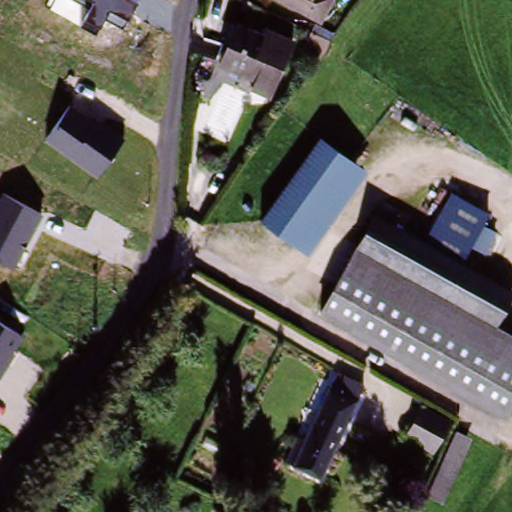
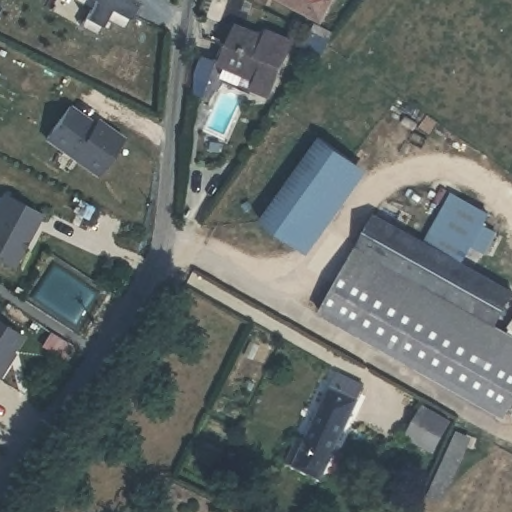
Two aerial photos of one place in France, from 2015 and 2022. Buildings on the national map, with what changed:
unchanged [(89,6),(78,0),(137,0),(138,1),(125,29),(106,19),(97,35),(79,25),(89,6)]
unchanged [(272,0),(324,0),(315,20),(272,0)]
unchanged [(255,91),(260,80),(227,63),(243,32),(270,46),(278,31),(302,45),(272,100),(255,91)]
unchanged [(44,139),(69,104),(97,121),(99,118),(127,137),(97,178),(44,139)]
unchanged [(362,170),(302,252),(268,227),(328,145),(362,170)]
unchanged [(0,263),(0,196),(2,191),(45,213),(15,271),(0,263)]
unchanged [(454,194),(491,216),(465,261),(427,239),(454,194)]
unchanged [(512,297),(493,327),(362,245),(382,211),(427,239),(465,261),(512,290),(512,297)]
unchanged [(362,245),(493,327),(484,344),(352,260),(362,245)]
unchanged [(512,362),(512,401),(500,419),(471,403),(322,309),(352,260),(484,344),(512,362)]
unchanged [(0,379),(0,319),(23,336),(15,353),(17,353),(1,380),(0,379)]
unchanged [(317,477),(287,460),(299,438),(303,441),(344,375),(368,390),(317,477)]
unchanged [(407,436),(426,407),(451,424),(432,453),(407,436)]

